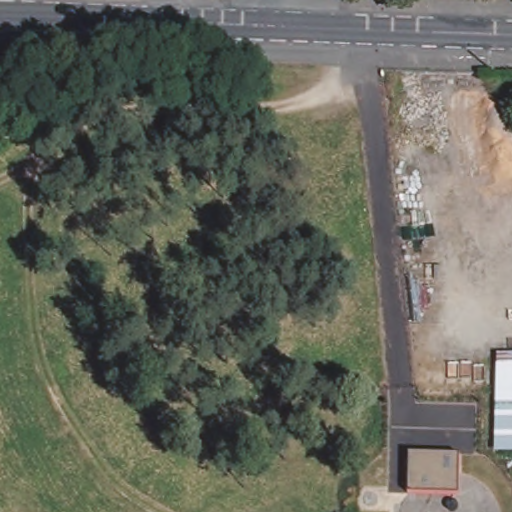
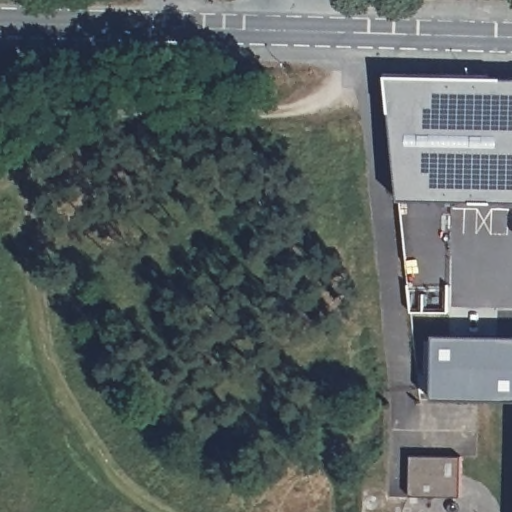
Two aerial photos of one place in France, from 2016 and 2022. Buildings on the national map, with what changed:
new [(512,200),(394,196),(382,71),(512,75),(512,200)]
new [(512,334),(512,401),(429,400),(430,332),(512,334)]
unchanged [(459,498),(409,496),(410,456),(460,457),(459,498)]

